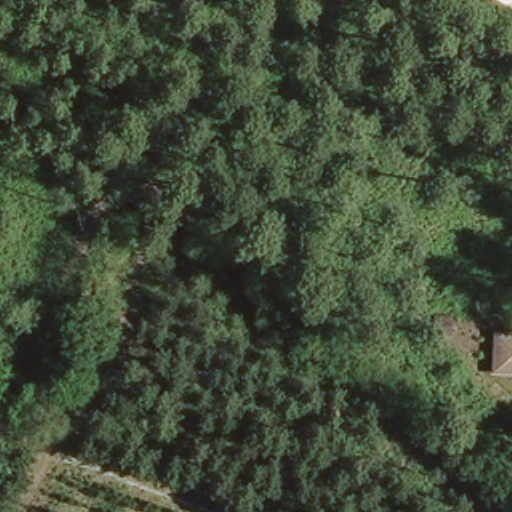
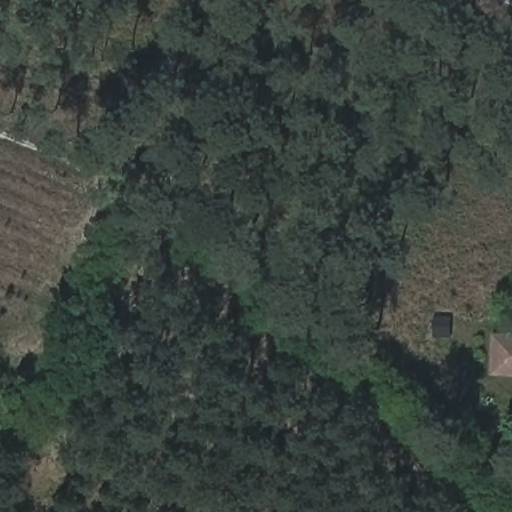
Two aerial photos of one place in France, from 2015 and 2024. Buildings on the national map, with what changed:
unchanged [(413,288),(430,288),(431,304),(413,304),(413,288)]
unchanged [(499,342),(512,342),(512,369),(499,369),(499,342)]

